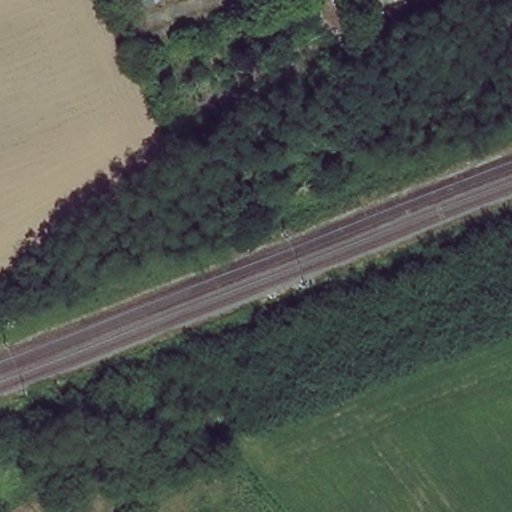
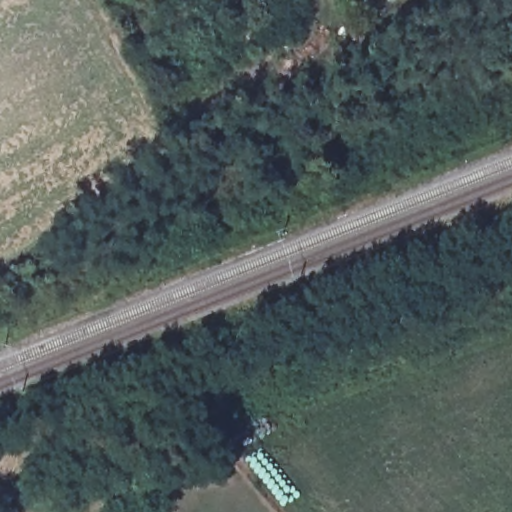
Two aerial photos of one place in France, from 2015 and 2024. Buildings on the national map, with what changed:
[]

